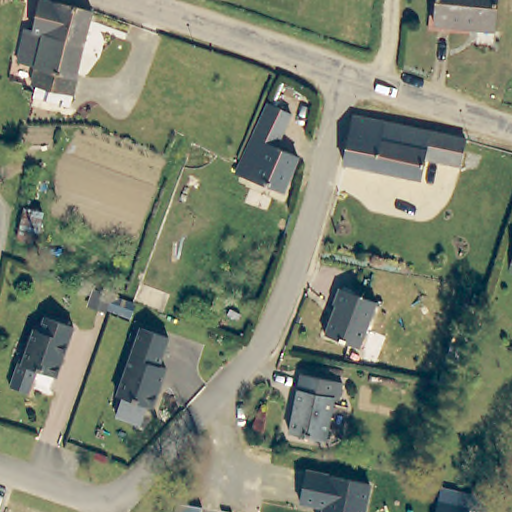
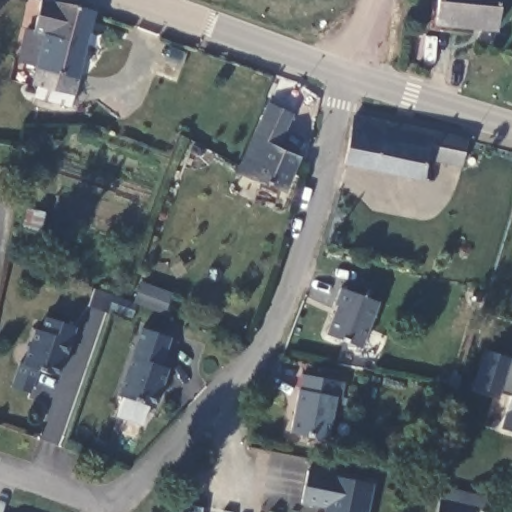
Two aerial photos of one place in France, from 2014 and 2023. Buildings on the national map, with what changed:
unchanged [(41,79),(47,60),(29,55),(37,21),(45,24),(51,0),(60,0),(96,11),(91,36),(90,36),(78,88),(75,98),(46,90),(44,89),(46,80),(41,79)]
unchanged [(437,0),(497,0),(494,32),(435,25),(437,0)]
unchanged [(267,105),(290,117),(276,151),(299,160),(285,195),(236,175),(252,141),(267,105)]
unchanged [(345,172),(348,123),(426,131),(455,135),(461,136),(460,162),(425,158),(423,179),(345,172)]
unchanged [(104,313),(86,307),(92,292),(110,299),(104,313)]
unchanged [(335,309),(332,308),(340,292),(376,310),(355,354),(321,338),(335,309)]
unchanged [(105,314),(110,301),(132,310),(128,323),(105,314)]
unchanged [(35,375),(27,398),(9,391),(17,367),(21,368),(34,334),(41,337),(47,322),(74,332),(55,382),(35,375)]
unchanged [(156,367),(166,371),(150,411),(116,399),(142,329),(167,338),(156,367)]
new [(512,432),(500,428),(510,397),(499,393),(497,396),(470,387),(483,351),(512,361),(512,432)]
unchanged [(343,382),(341,399),(337,398),(332,442),(293,437),(301,378),(343,382)]
unchanged [(308,471),(372,484),(367,512),(322,512),(323,509),(300,504),(308,471)]
unchanged [(442,486),(489,497),(485,511),(468,508),(467,512),(436,512),(442,486)]
unchanged [(179,504),(203,509),(202,512),(176,512),(179,504)]

